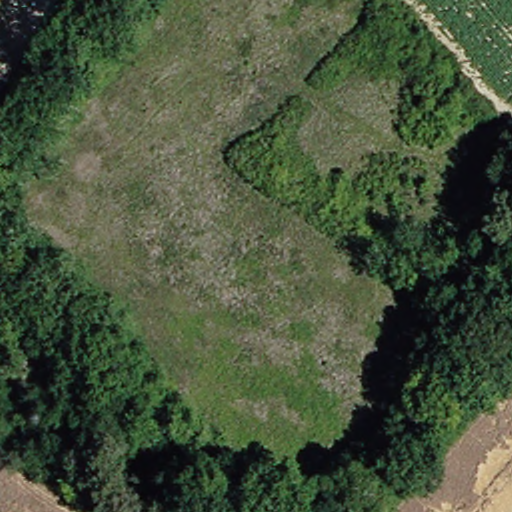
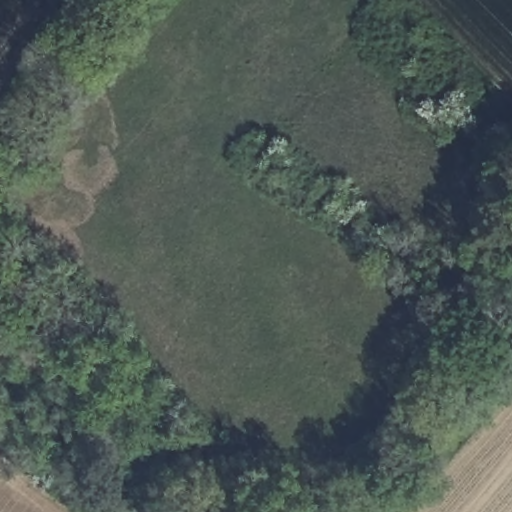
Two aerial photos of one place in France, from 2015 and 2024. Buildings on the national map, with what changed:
[]

